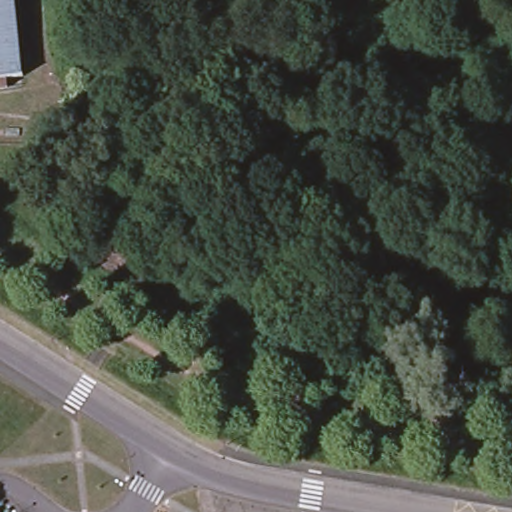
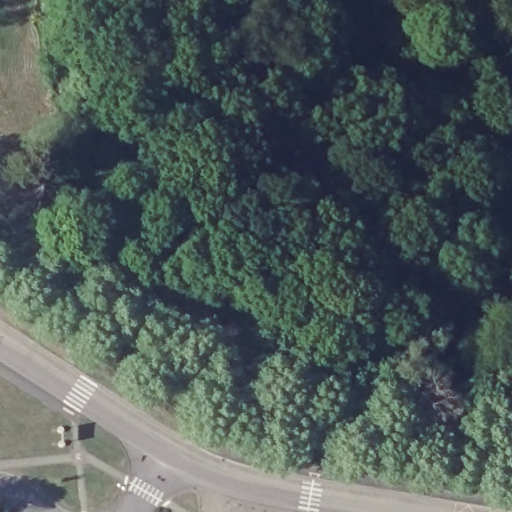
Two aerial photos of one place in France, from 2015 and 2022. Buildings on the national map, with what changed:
demolished [(0,78),(0,0),(14,0),(23,75),(0,78)]

